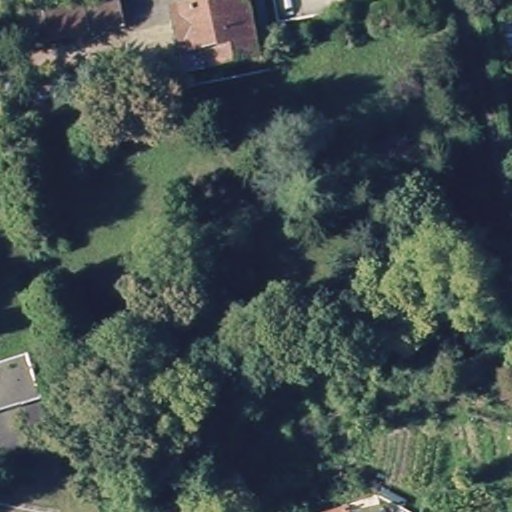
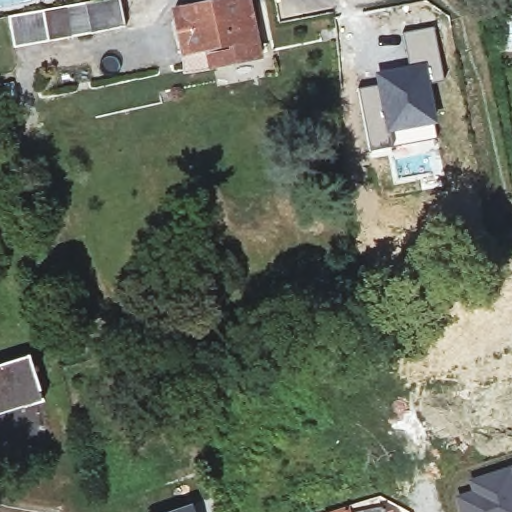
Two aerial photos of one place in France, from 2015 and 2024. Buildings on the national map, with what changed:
unchanged [(32,13),(104,0),(121,0),(125,27),(13,48),(7,17),(32,13)]
unchanged [(224,0),(248,0),(260,56),(188,72),(174,11),(224,0)]
new [(408,65),(402,32),(434,26),(443,79),(430,82),(437,122),(386,133),(375,85),(373,72),(408,65)]
new [(375,85),(386,133),(389,145),(368,149),(356,87),(375,85)]
unchanged [(45,403),(0,417),(0,367),(31,357),(45,403)]
new [(467,480),(512,465),(512,512),(460,512),(453,495),(470,489),(467,480)]
unchanged [(408,503),(404,512),(401,512),(394,508),(384,503),(388,493),(408,503)]
new [(194,512),(189,512),(193,511),(194,512)]

